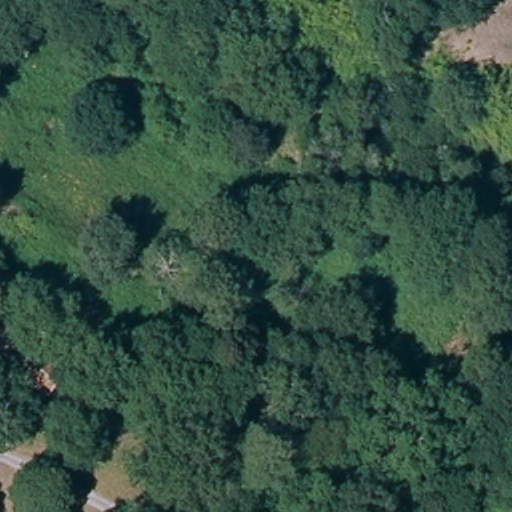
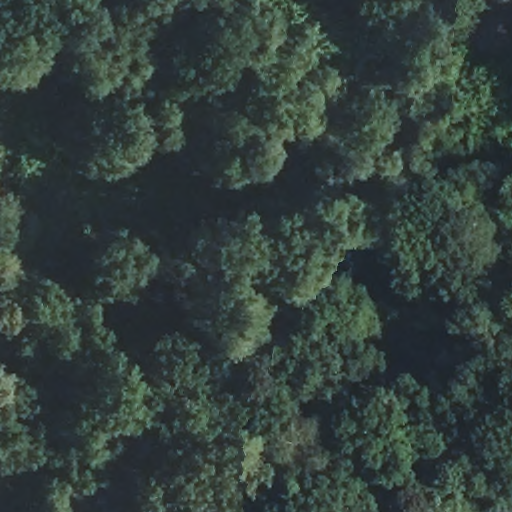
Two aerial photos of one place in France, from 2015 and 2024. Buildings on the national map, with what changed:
unchanged [(63,381),(44,401),(0,366),(0,331),(62,381),(63,381)]

